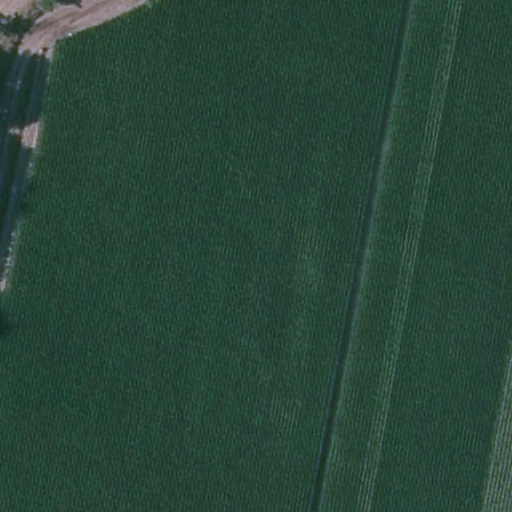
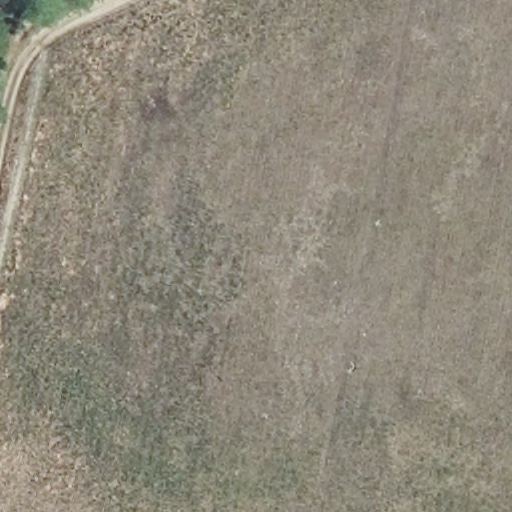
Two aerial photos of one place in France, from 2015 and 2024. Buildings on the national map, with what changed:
[]

